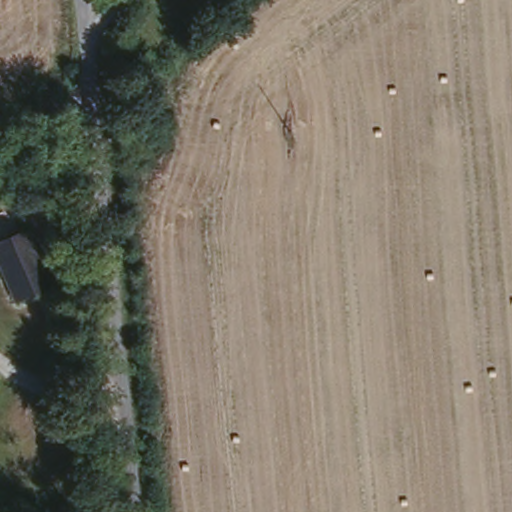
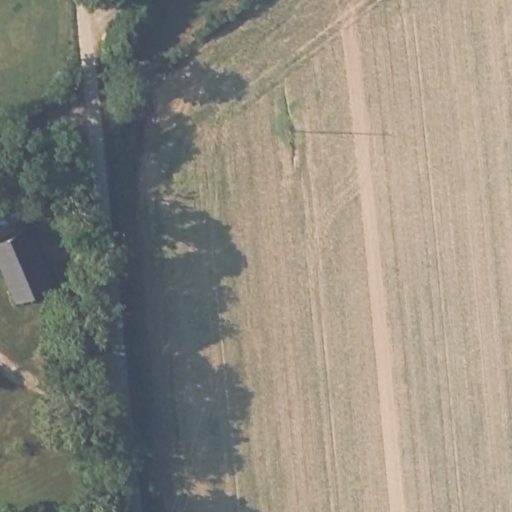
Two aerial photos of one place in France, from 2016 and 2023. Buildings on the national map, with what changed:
unchanged [(50,289),(16,301),(0,258),(0,244),(28,232),(50,289)]

